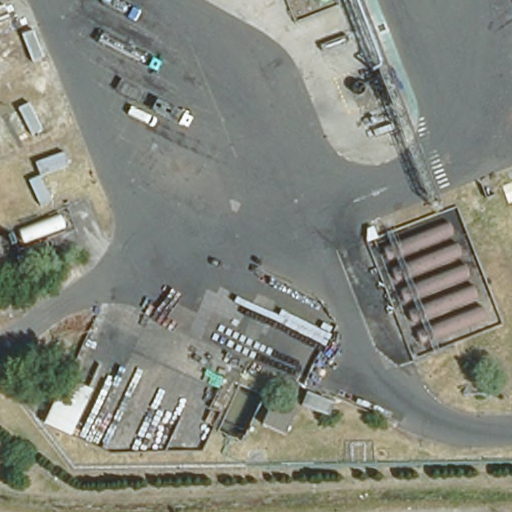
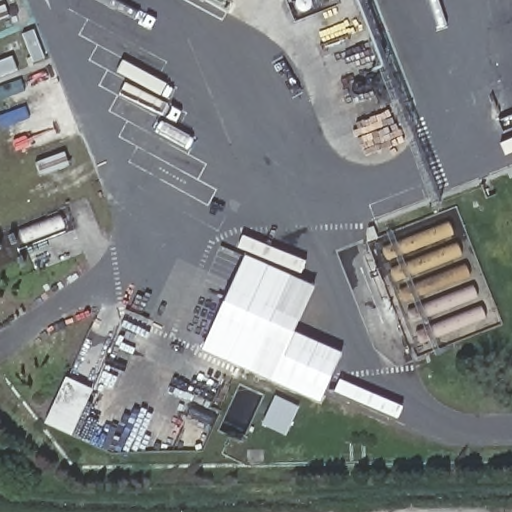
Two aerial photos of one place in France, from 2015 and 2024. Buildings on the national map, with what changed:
demolished [(312,10),(308,0),(330,0),(330,1),(312,10)]
unchanged [(454,201),(499,318),(411,352),(366,235),(454,201)]
new [(340,355),(318,403),(204,352),(246,257),(313,287),(292,334),(340,355)]
unchanged [(94,389),(72,438),(42,424),(65,375),(94,389)]
unchanged [(297,407),(286,433),(263,423),(274,397),(297,407)]

